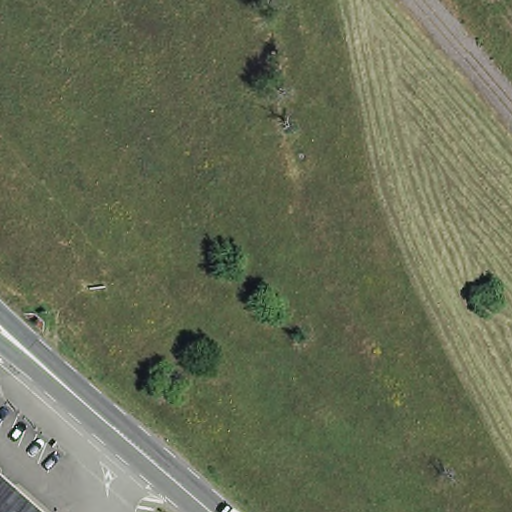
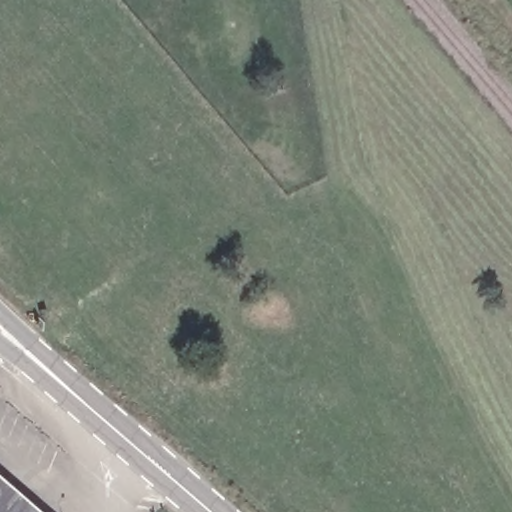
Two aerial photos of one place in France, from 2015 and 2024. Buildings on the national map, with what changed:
unchanged [(0,512),(0,471),(47,512),(0,512)]

